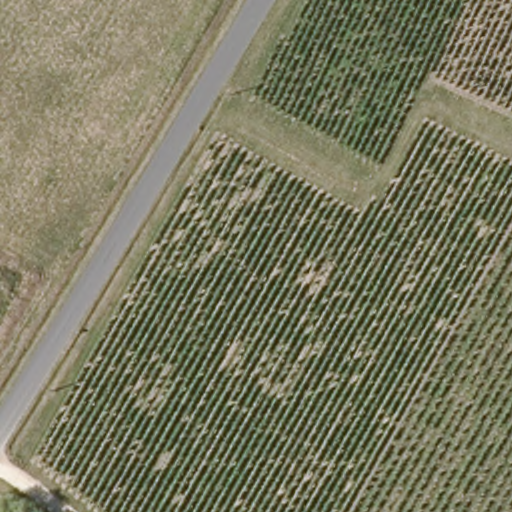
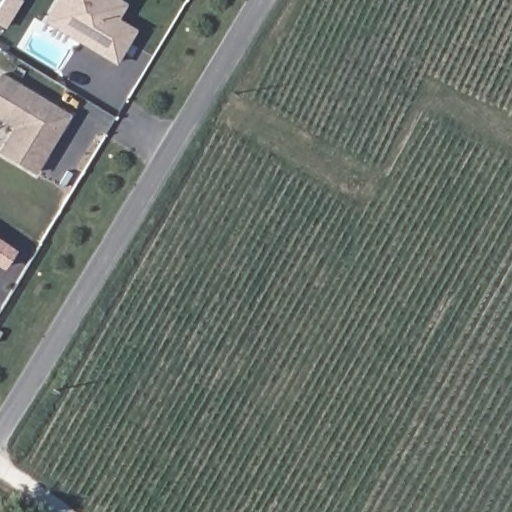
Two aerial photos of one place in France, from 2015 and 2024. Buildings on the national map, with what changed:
new [(23,0),(24,1),(5,29),(0,26),(0,4),(2,0),(23,0)]
new [(119,19),(135,28),(114,64),(44,21),(57,0),(119,0),(124,5),(119,19)]
new [(35,174),(0,152),(0,148),(13,126),(0,118),(0,71),(70,114),(35,174)]
new [(4,267),(0,264),(0,240),(15,250),(4,267)]

